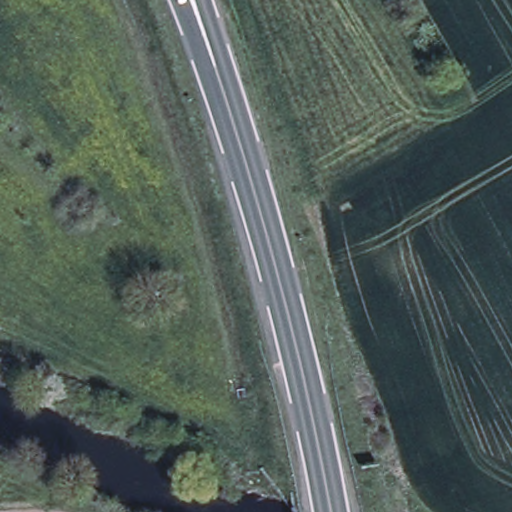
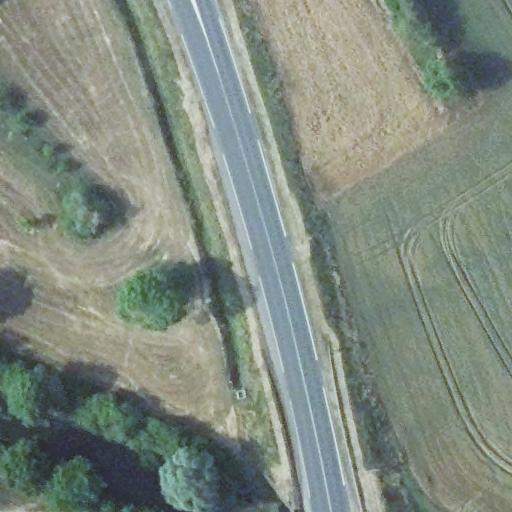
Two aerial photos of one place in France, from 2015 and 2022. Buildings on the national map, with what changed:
[]

